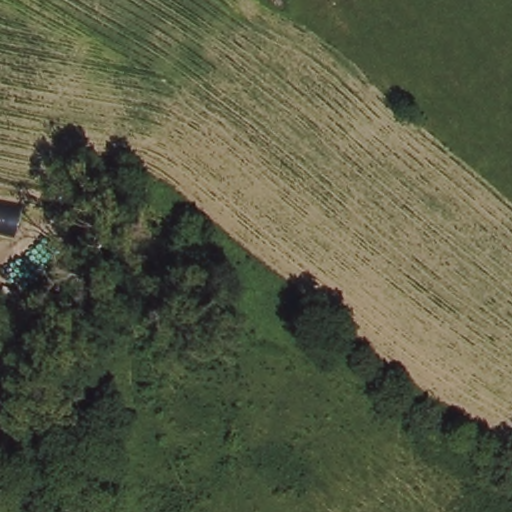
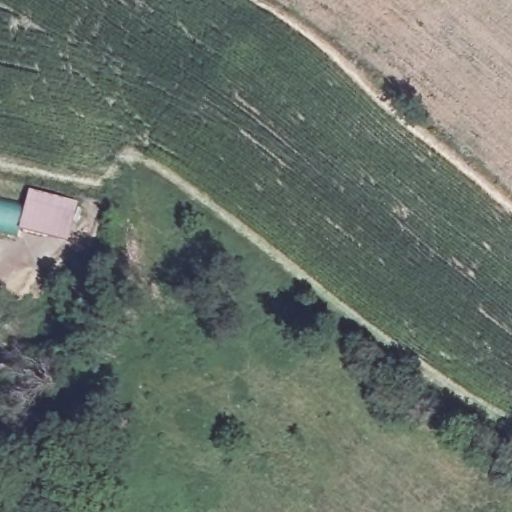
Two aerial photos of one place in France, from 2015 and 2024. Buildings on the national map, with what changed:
new [(23,204),(28,189),(78,202),(68,243),(17,229),(23,204)]
new [(17,229),(16,236),(0,232),(0,198),(23,204),(17,229)]

